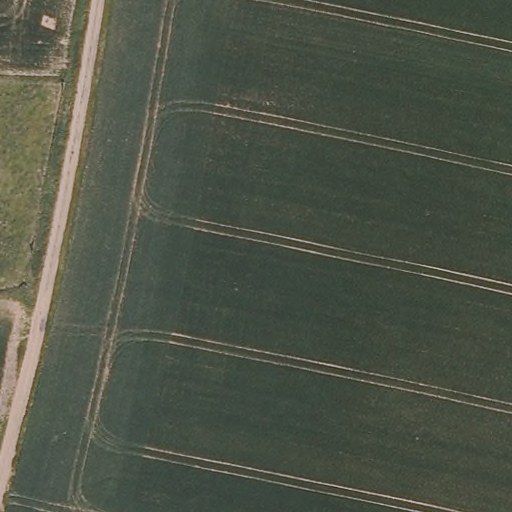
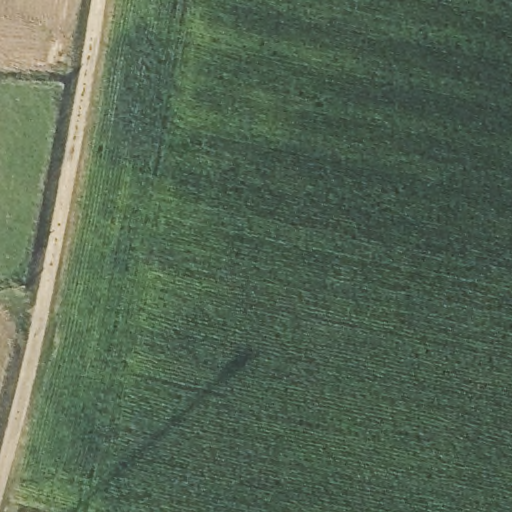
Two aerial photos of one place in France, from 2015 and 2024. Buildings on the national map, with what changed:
[]

